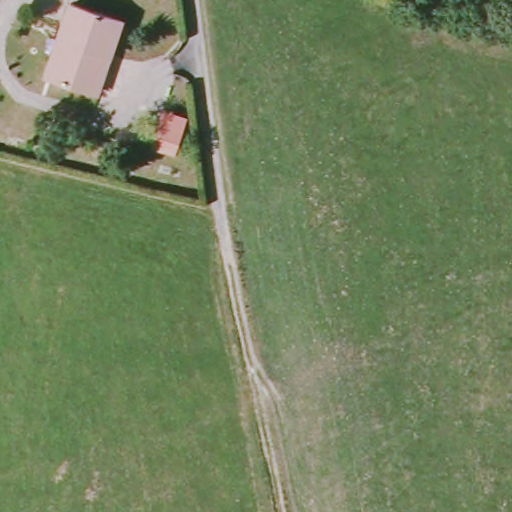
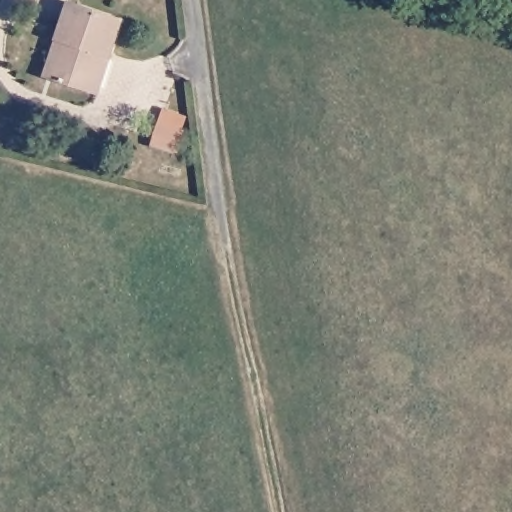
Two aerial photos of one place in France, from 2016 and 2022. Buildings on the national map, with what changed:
unchanged [(118,18),(95,92),(51,79),(61,45),(53,42),(66,3),(118,18)]

